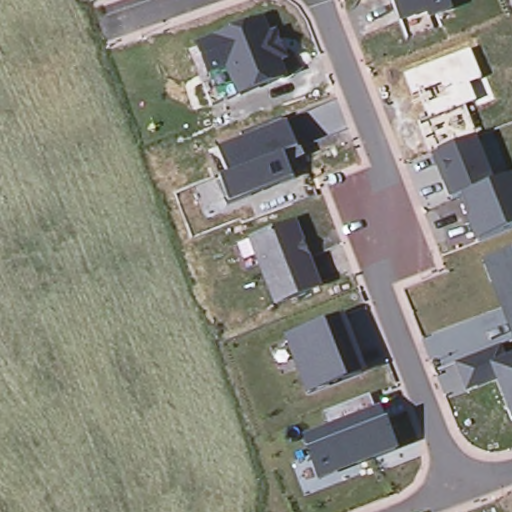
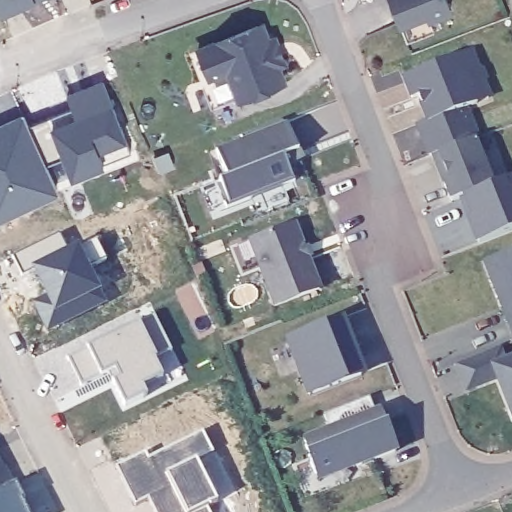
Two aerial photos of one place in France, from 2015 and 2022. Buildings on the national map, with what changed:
new [(3,11),(0,4),(0,0),(30,0),(3,11)]
unchanged [(450,9),(432,19),(430,16),(402,27),(391,0),(447,0),(450,9)]
unchanged [(265,22),(272,35),(280,34),(288,65),(282,69),(286,84),(238,100),(226,72),(208,78),(196,46),(265,22)]
unchanged [(429,155),(418,123),(430,120),(425,106),(447,98),(441,85),(412,96),(405,76),(470,51),(482,80),(470,84),(477,103),(465,107),(479,141),(434,155),(429,155)]
new [(130,152),(70,175),(61,157),(45,163),(30,123),(72,107),(67,95),(102,82),(130,152)]
unchanged [(295,148),(282,153),(292,178),(227,204),(217,177),(225,174),(215,148),(240,137),(239,134),(278,118),(280,122),(284,120),(295,148)]
new [(59,199),(0,227),(0,129),(23,119),(59,199)]
unchanged [(479,141),(493,186),(512,181),(512,231),(475,244),(460,199),(451,201),(434,155),(479,141)]
unchanged [(272,303),(247,238),(292,221),(317,285),(272,303)]
new [(60,232),(67,246),(80,241),(108,302),(46,331),(32,301),(47,293),(35,267),(22,272),(15,254),(60,232)]
unchanged [(512,248),(512,294),(510,288),(497,294),(490,277),(483,259),(512,248)]
unchanged [(506,317),(502,305),(512,301),(512,315),(506,317)]
unchanged [(317,331),(315,326),(343,315),(345,320),(365,377),(346,386),(307,398),(287,342),(317,331)]
unchanged [(512,315),(512,335),(506,317),(512,315)]
new [(138,322),(156,359),(153,360),(161,378),(140,387),(145,398),(123,407),(112,383),(118,379),(114,371),(80,387),(66,357),(138,322)]
unchanged [(503,346),(507,359),(512,358),(512,420),(497,378),(468,391),(457,363),(503,346)]
unchanged [(327,425),(323,414),(376,392),(383,406),(400,451),(319,484),(298,435),(327,425)]
new [(148,457),(203,429),(214,450),(197,456),(218,497),(206,504),(210,512),(157,512),(148,494),(135,501),(117,463),(146,450),(148,457)]
new [(11,482),(0,487),(0,464),(2,463),(11,482)]
new [(23,501),(20,502),(25,512),(0,512),(0,493),(15,486),(23,501)]

